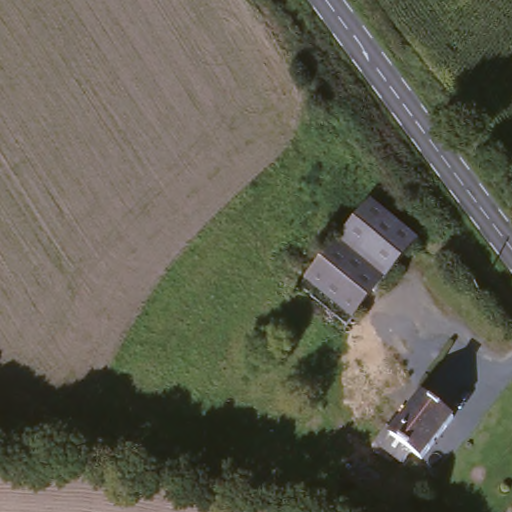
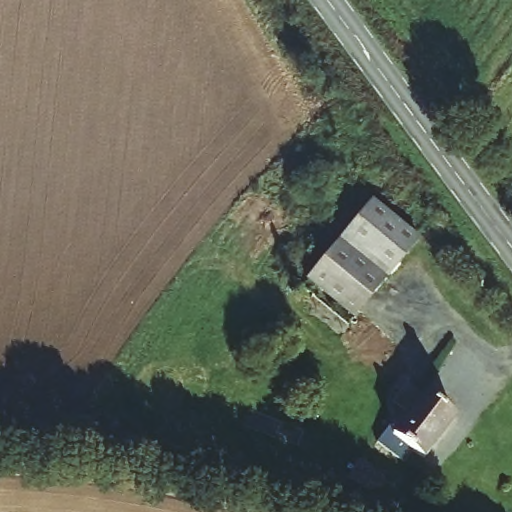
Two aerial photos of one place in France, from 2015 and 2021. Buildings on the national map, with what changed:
unchanged [(307,272),(379,200),(419,241),(350,315),(307,272)]
unchanged [(390,425),(397,429),(425,391),(456,416),(422,457),(407,445),(397,454),(379,440),(390,425)]
unchanged [(383,477),(368,495),(346,475),(358,458),(383,477)]

